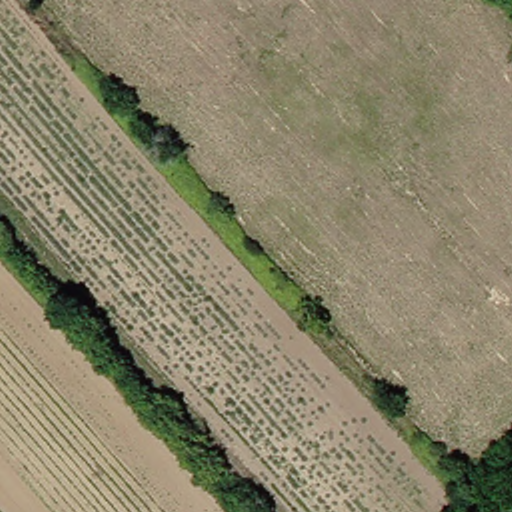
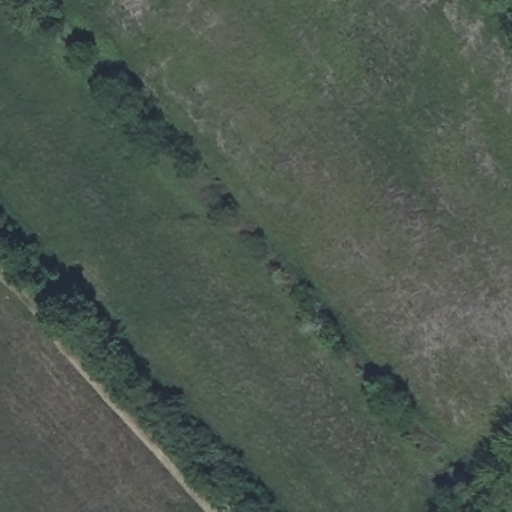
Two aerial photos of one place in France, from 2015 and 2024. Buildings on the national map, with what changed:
[]

